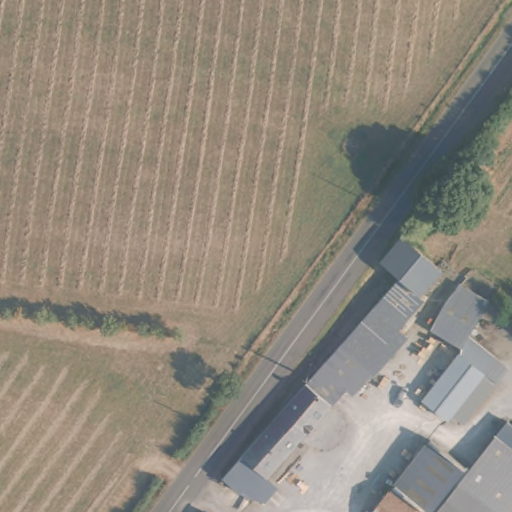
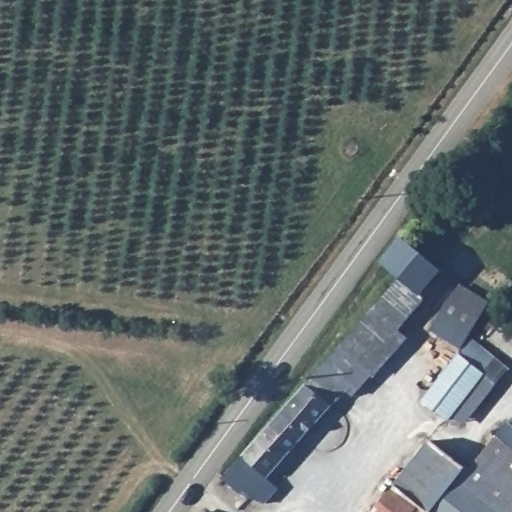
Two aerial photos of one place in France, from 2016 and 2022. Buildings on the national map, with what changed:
unchanged [(391,337),(399,346),(375,371),(346,345),(398,277),(383,262),(402,241),(445,275),(420,300),(391,337)]
unchanged [(487,324),(476,340),(444,319),(454,306),(487,324)]
unchanged [(346,345),(375,371),(339,413),(308,386),(346,345)]
unchanged [(466,357),(489,375),(452,422),(430,404),(466,357)]
unchanged [(293,401),(308,387),(332,410),(271,481),(249,462),(293,401)]
unchanged [(512,452),(512,512),(434,512),(467,470),(472,473),(497,441),(512,452)]
unchanged [(432,443),(467,470),(434,512),(378,512),(432,443)]

